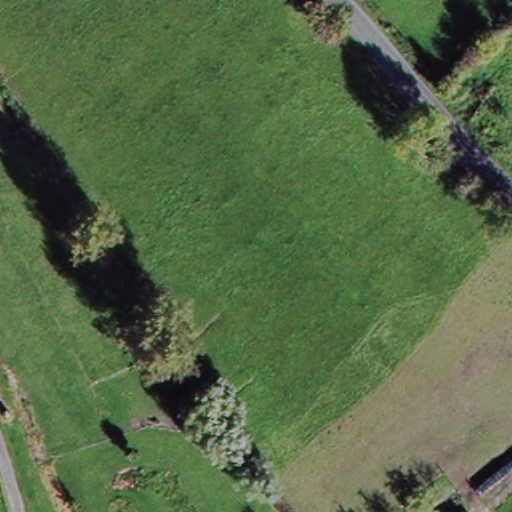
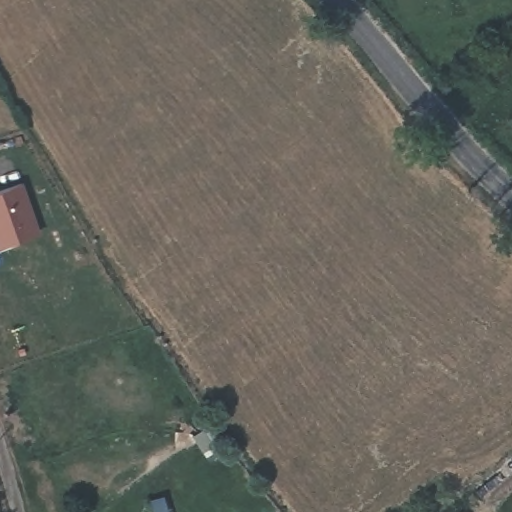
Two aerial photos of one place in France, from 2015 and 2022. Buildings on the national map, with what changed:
new [(0,189),(24,180),(41,233),(0,245),(0,189)]

